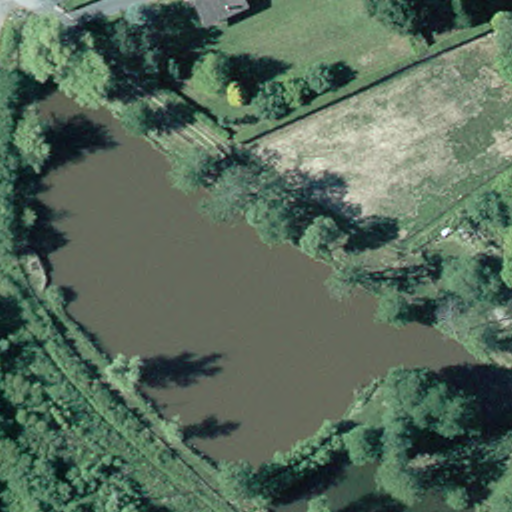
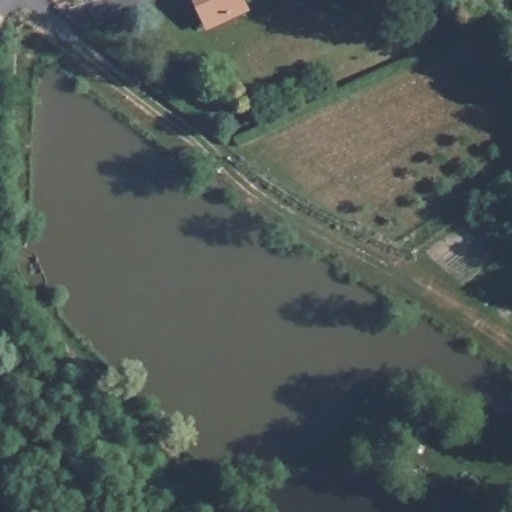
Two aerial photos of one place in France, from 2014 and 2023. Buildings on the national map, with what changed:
unchanged [(192,0),(237,0),(238,5),(207,19),(201,21),(192,0)]

